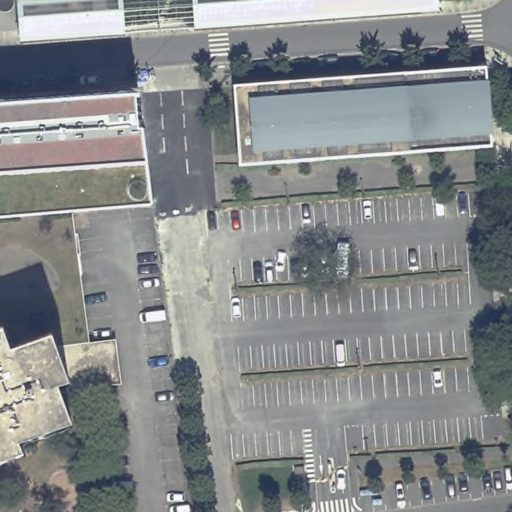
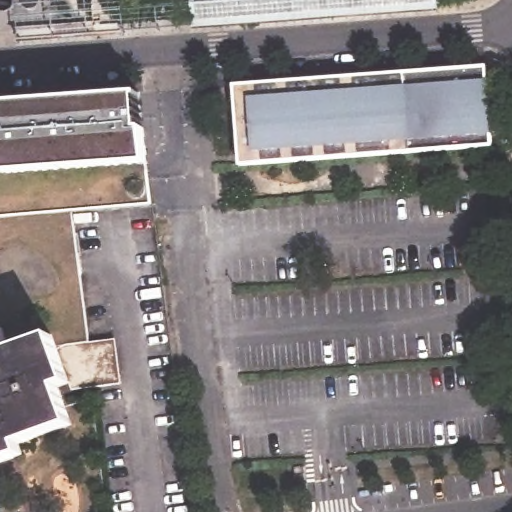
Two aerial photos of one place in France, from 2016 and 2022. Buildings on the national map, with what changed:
unchanged [(436,9),(19,41),(18,0),(435,0),(436,9)]
unchanged [(242,167),(236,88),(481,69),(488,149),(242,167)]
unchanged [(136,93),(137,125),(141,125),(146,161),(0,172),(0,103),(136,93)]
unchanged [(146,161),(151,203),(0,208),(0,172),(146,161)]
unchanged [(119,341),(123,381),(73,381),(61,386),(74,422),(22,444),(26,455),(0,466),(0,333),(5,331),(13,351),(56,336),(62,350),(71,343),(90,343),(119,341)]

